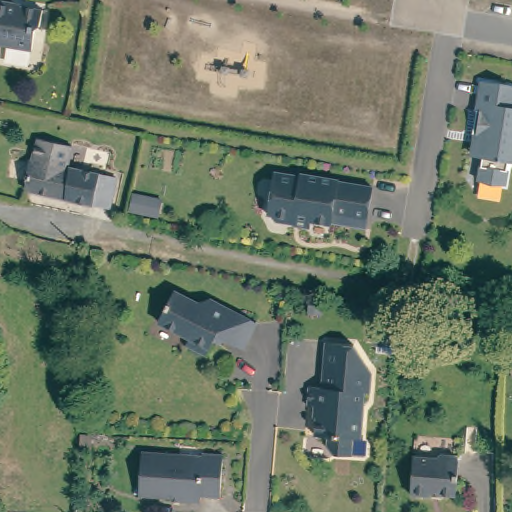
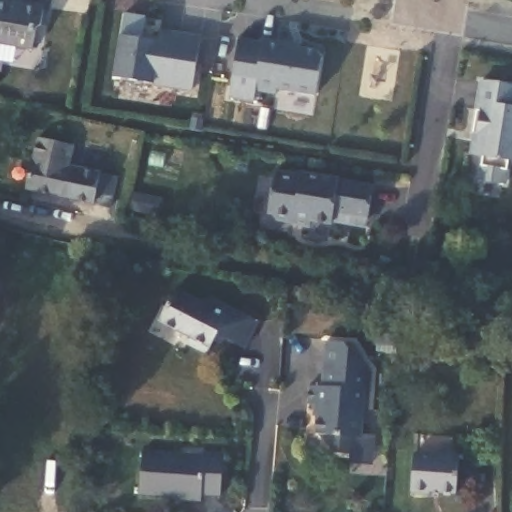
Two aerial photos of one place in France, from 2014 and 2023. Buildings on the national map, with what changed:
unchanged [(41,22),(36,26),(32,46),(0,41),(0,0),(12,0),(42,5),(41,22)]
new [(147,17),(142,40),(157,44),(161,30),(202,39),(192,92),(152,85),(114,77),(121,37),(125,14),(147,17)]
new [(257,41),(257,38),(300,45),(300,49),(322,52),(315,95),(276,90),(275,95),(256,92),(254,103),(229,99),(232,78),(240,39),(257,41)]
unchanged [(470,130),(473,107),(478,78),(484,79),(512,83),(512,157),(506,156),(501,159),(505,164),(502,181),(477,177),(480,152),(477,151),(467,150),(470,130)]
unchanged [(94,200),(80,198),(26,187),(31,157),(33,157),(34,155),(38,136),(72,142),(69,161),(67,165),(86,169),(100,171),(117,175),(111,204),(94,200)]
unchanged [(352,222),(335,220),(335,221),(314,219),(313,223),(291,220),(277,217),(271,210),(277,169),(303,173),(303,170),(341,176),(341,177),(376,184),(371,218),(370,225),(352,222)]
unchanged [(196,301),(209,297),(257,322),(244,348),(216,335),(206,354),(186,343),(189,337),(157,321),(173,290),(196,301)]
unchanged [(352,342),(365,363),(365,371),(370,371),(368,390),(363,390),(360,435),(352,435),(352,451),(332,450),(325,441),(325,432),(315,432),(316,403),(307,403),(307,385),(321,385),(324,340),(352,342)]
unchanged [(177,453),(180,457),(197,458),(197,451),(217,451),(216,495),(196,495),(196,499),(174,498),(174,493),(135,492),(137,451),(177,453)]
unchanged [(442,456),(445,452),(461,453),(463,457),(461,493),(435,491),(434,495),(416,493),(418,454),(442,456)]

